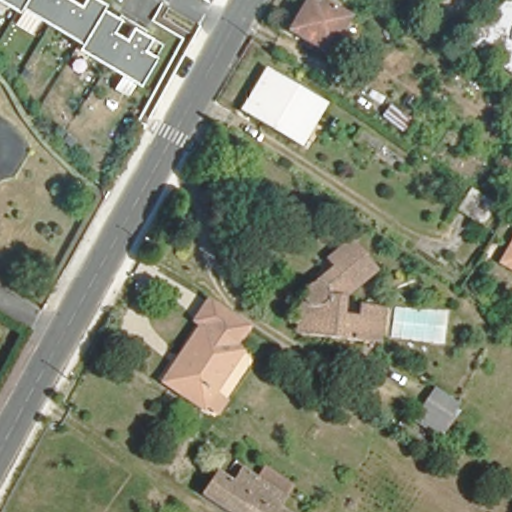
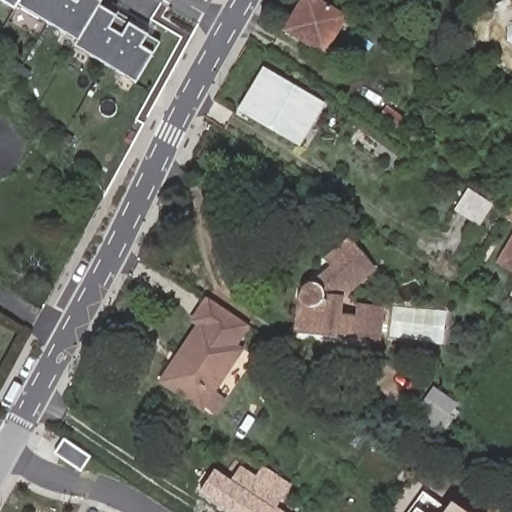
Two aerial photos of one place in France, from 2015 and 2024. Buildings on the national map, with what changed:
unchanged [(72,47),(75,41),(15,8),(14,11),(0,3),(0,0),(102,0),(100,8),(157,42),(136,85),(72,47)]
unchanged [(319,51),(285,27),(302,0),(319,0),(343,17),(319,51)]
unchanged [(512,3),(512,78),(509,79),(456,43),(456,30),(511,3),(512,3)]
unchanged [(325,72),(317,83),(298,69),(304,58),(325,72)]
unchanged [(318,106),(295,146),(281,138),(238,110),(251,88),(255,90),(265,74),(306,99),(318,106)]
unchanged [(373,153),(359,145),(357,148),(346,140),(355,125),(381,143),(373,153)]
unchanged [(496,168),(500,154),(512,157),(512,169),(511,173),(496,168)]
unchanged [(494,207),(479,232),(455,222),(468,191),(494,207)]
unchanged [(512,214),(510,213),(512,209),(512,214)]
unchanged [(512,244),(512,272),(500,264),(512,244)]
unchanged [(300,318),(301,304),(300,302),(300,300),(300,299),(300,298),(300,297),(300,295),(301,294),(302,293),(303,292),(304,290),(305,290),(306,289),(307,289),(309,288),(310,288),(311,288),(313,288),(314,288),(315,289),(331,275),(327,269),(354,248),(375,276),(339,303),(338,319),(351,319),(357,319),(358,310),(378,312),(376,348),(362,348),(310,344),(299,344),(300,318)]
unchanged [(212,416),(196,406),(194,404),(184,398),(175,392),(165,385),(160,382),(176,358),(198,324),(191,320),(205,299),(241,323),(227,344),(234,349),(219,370),(213,379),(209,385),(225,396),(212,416)]
unchanged [(418,412),(433,388),(457,404),(436,436),(424,428),(413,421),(418,412)]
unchanged [(274,512),(223,512),(200,497),(213,475),(222,480),(234,462),(244,467),(240,472),(256,481),(262,472),(287,488),(273,511),(274,512)]
new [(423,492),(448,510),(452,504),(462,512),(407,512),(423,492)]

